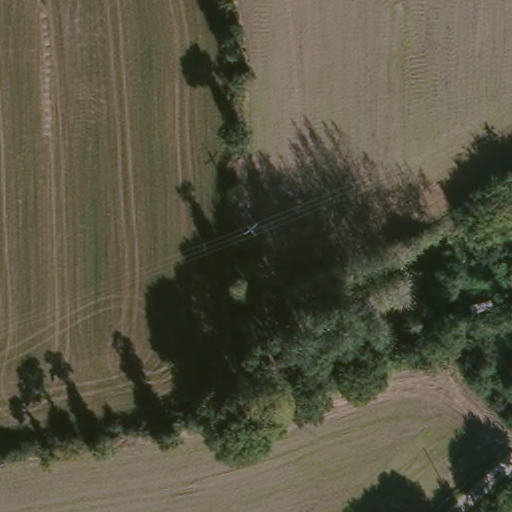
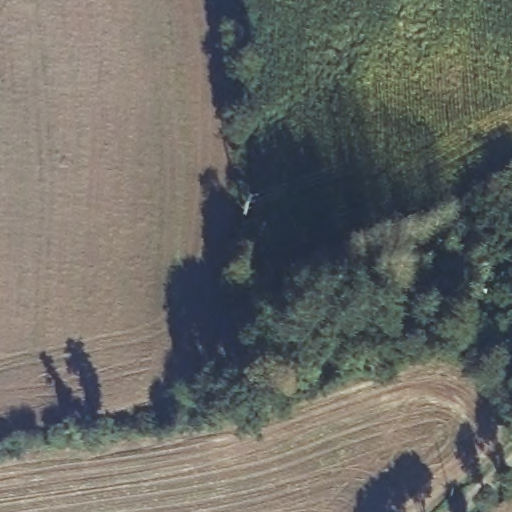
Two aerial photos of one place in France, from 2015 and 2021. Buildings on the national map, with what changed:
unchanged [(424,273),(437,312),(374,336),(363,297),(424,273)]

